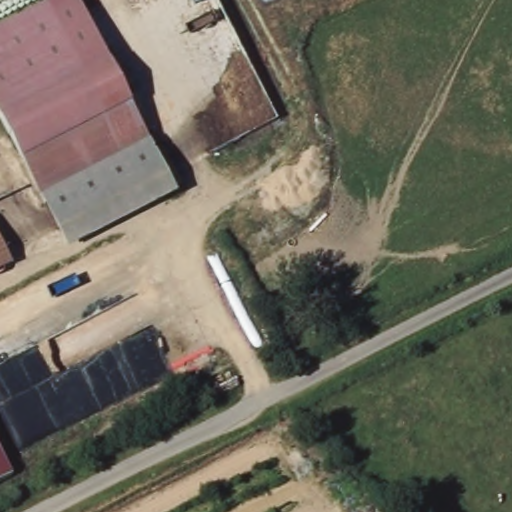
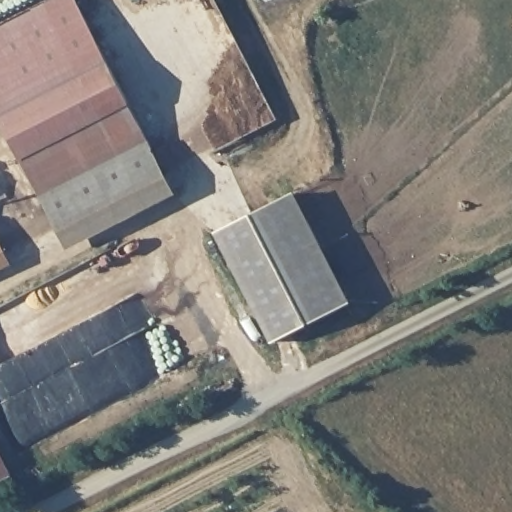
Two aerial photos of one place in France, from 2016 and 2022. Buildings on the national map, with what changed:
unchanged [(76,0),(112,74),(163,175),(57,229),(0,115),(0,4),(8,0),(76,0)]
new [(293,199),(347,308),(269,347),(214,239),(293,199)]
unchanged [(0,260),(0,253),(2,259),(0,260)]
unchanged [(0,479),(0,451),(10,474),(0,479)]

